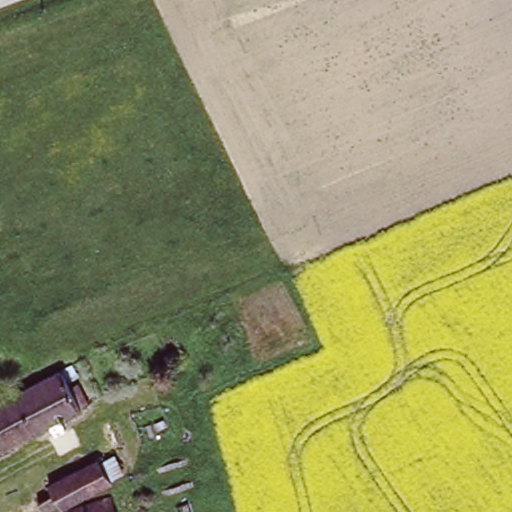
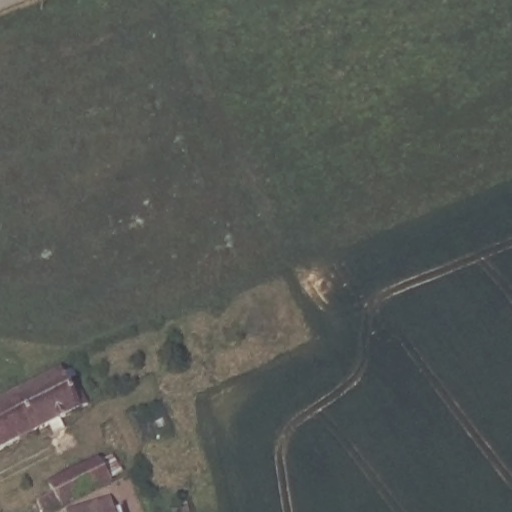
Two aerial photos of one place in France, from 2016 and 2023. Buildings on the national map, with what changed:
unchanged [(67,393),(74,389),(84,407),(0,451),(0,396),(54,368),(67,393)]
unchanged [(37,503),(33,494),(47,488),(45,484),(75,471),(95,462),(104,483),(85,491),(52,505),(49,498),(37,503)]
unchanged [(106,492),(113,512),(63,512),(62,508),(106,492)]

